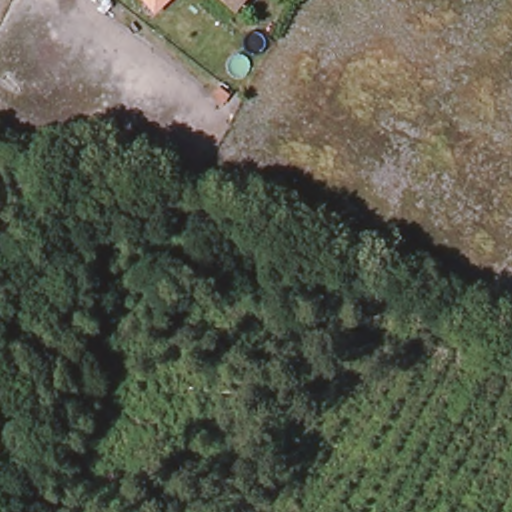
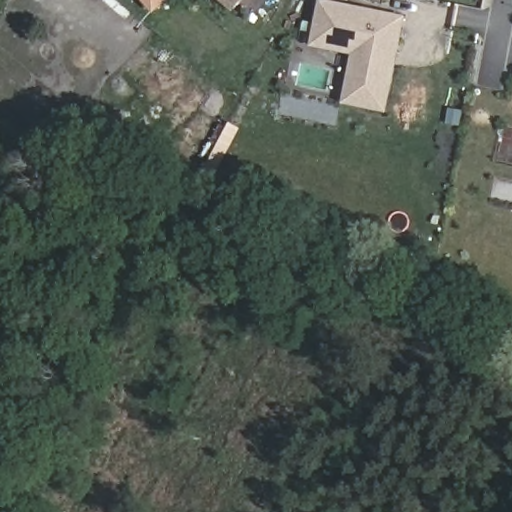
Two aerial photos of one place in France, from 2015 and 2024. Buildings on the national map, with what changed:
unchanged [(143,0),(172,0),(155,15),(143,0)]
unchanged [(227,0),(251,0),(241,12),(227,0)]
new [(322,1),(402,18),(384,109),(367,105),(373,75),(351,70),(355,52),(313,43),(322,1)]

